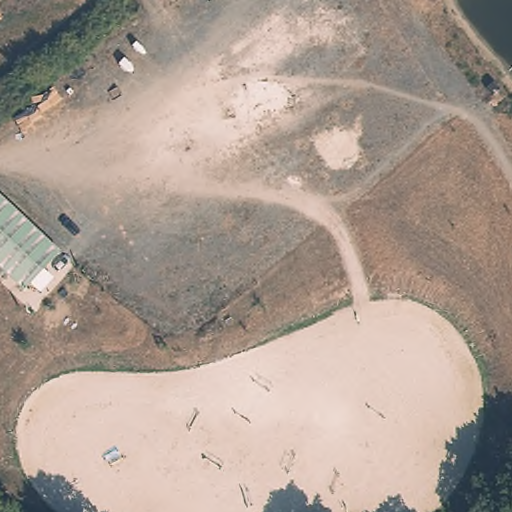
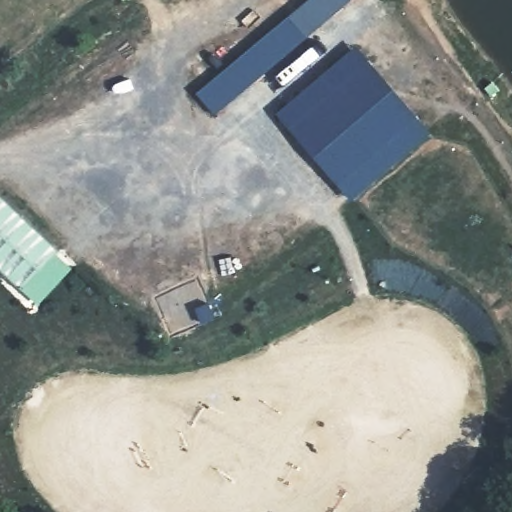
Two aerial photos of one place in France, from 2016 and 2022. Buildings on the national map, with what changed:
new [(216,114),(198,94),(310,0),(351,0),(216,114)]
new [(356,46),(430,134),(352,200),(280,114),(356,46)]
unchanged [(61,252),(24,293),(0,270),(0,197),(61,252)]

